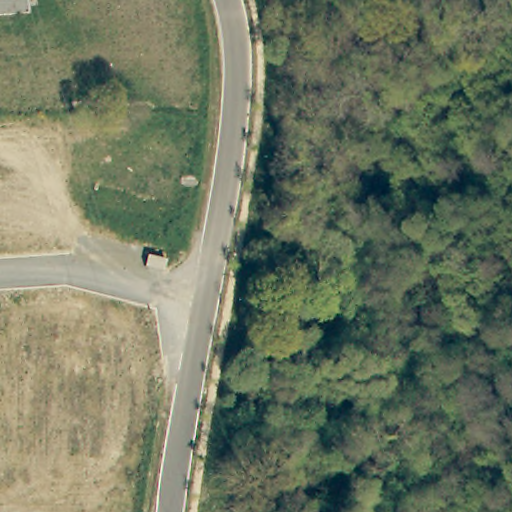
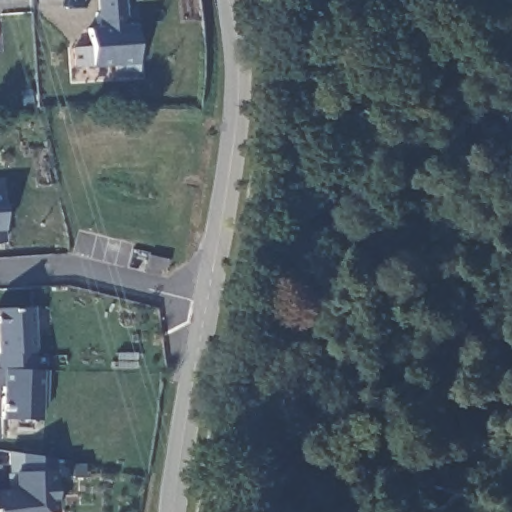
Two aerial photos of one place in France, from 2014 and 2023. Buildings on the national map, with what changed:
new [(127,23),(134,22),(138,71),(108,73),(108,66),(75,67),(73,46),(85,44),(84,27),(98,26),(96,0),(126,0),(127,23)]
new [(3,232),(4,245),(0,245),(0,194),(2,194),(3,232)]
new [(0,308),(29,307),(32,368),(0,369),(0,308)]
new [(40,367),(39,421),(0,421),(0,399),(0,388),(0,369),(32,368),(40,367)]
new [(53,512),(0,512),(0,493),(15,491),(14,472),(51,471),(53,512)]

